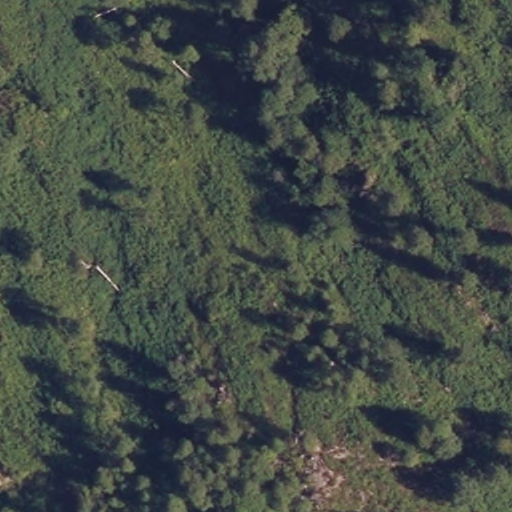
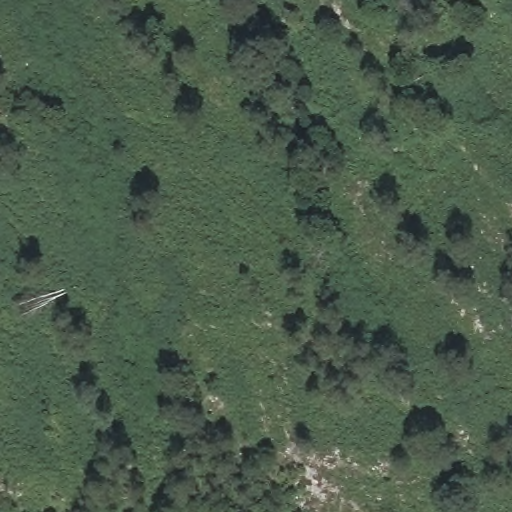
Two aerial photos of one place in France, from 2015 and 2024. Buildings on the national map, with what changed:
[]

